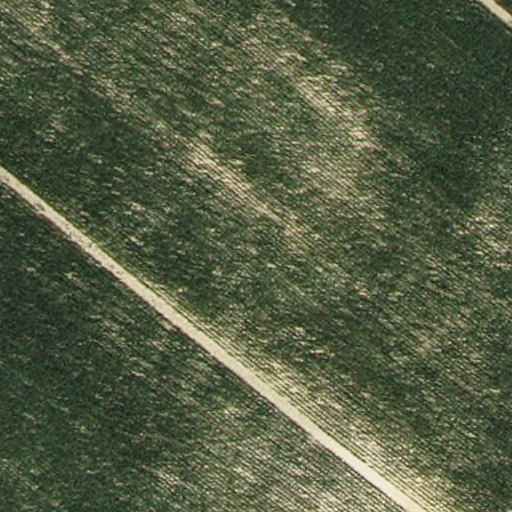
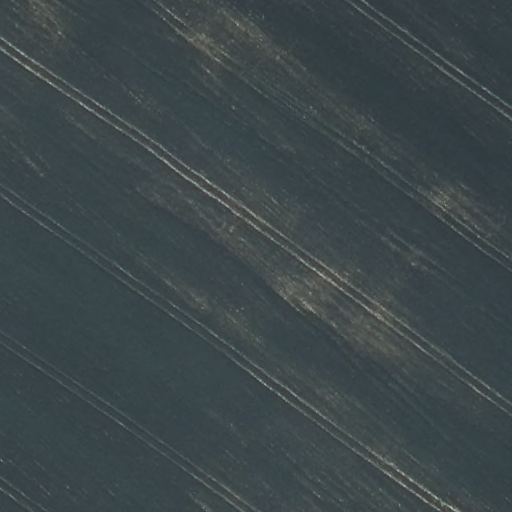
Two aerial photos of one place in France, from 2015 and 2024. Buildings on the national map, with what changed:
[]

